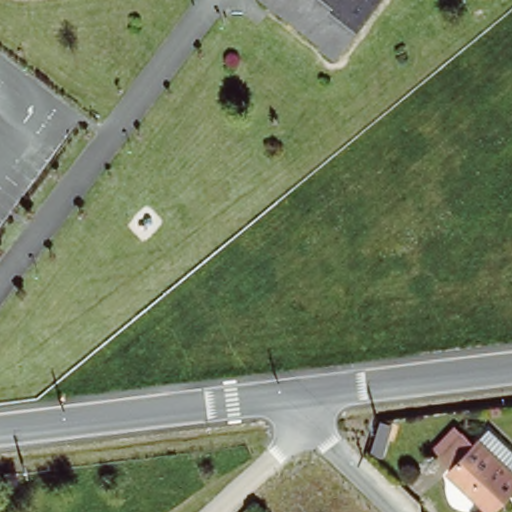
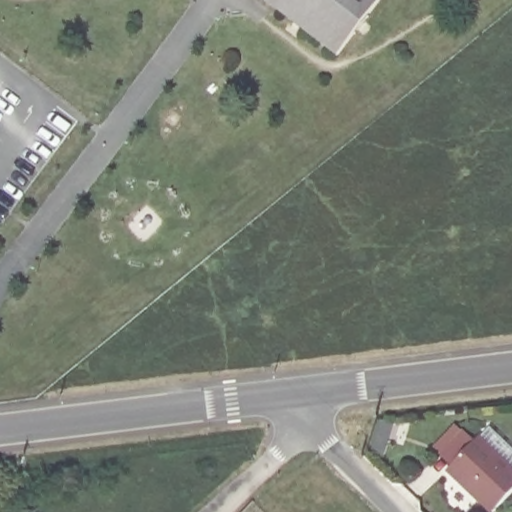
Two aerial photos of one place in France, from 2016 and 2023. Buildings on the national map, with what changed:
unchanged [(343,51),(278,0),(383,0),(343,51)]
unchanged [(494,512),(452,470),(456,465),(445,454),(469,429),(481,440),(486,435),(512,461),(512,496),(496,512),(494,512)]

